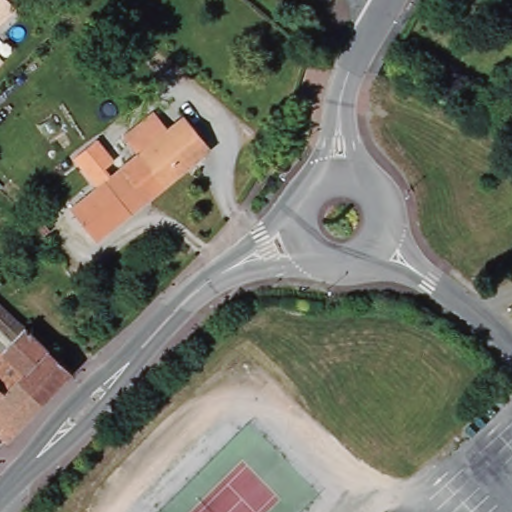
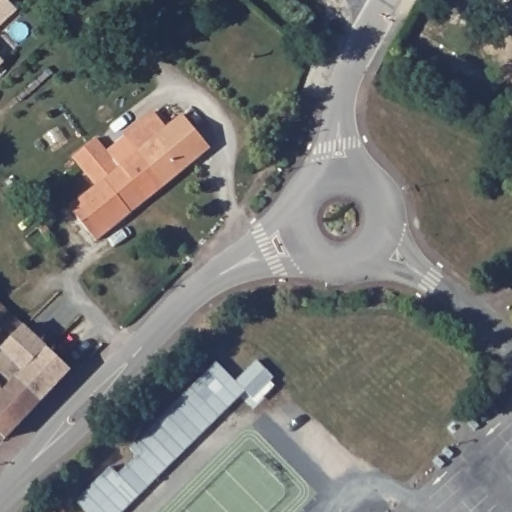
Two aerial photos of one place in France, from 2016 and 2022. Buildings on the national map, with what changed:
unchanged [(0,21),(0,0),(11,0),(16,5),(0,21)]
unchanged [(0,63),(0,58),(2,61),(0,63)]
unchanged [(160,189),(160,188),(140,164),(133,156),(132,155),(120,140),(122,138),(149,116),(162,131),(179,117),(207,150),(160,189)]
unchanged [(128,215),(96,242),(69,208),(118,169),(133,156),(140,164),(160,188),(144,201),(142,203),(128,215)]
unchanged [(49,230),(43,235),(38,227),(44,223),(49,230)]
unchanged [(35,248),(27,253),(19,243),(26,237),(35,248)]
unchanged [(0,286),(0,282),(2,284),(0,286)]
unchanged [(37,406),(2,374),(0,372),(0,304),(71,370),(42,401),(37,406)]
new [(117,476),(136,457),(129,450),(215,364),(234,383),(256,362),(273,379),(269,384),(273,388),(268,392),(256,405),(251,400),(244,393),(123,512),(84,512),(75,503),(109,469),(117,476)]
unchanged [(37,406),(5,439),(0,434),(0,372),(2,374),(37,406)]

